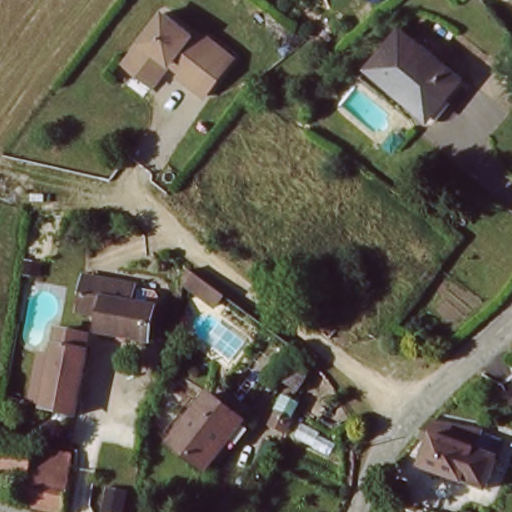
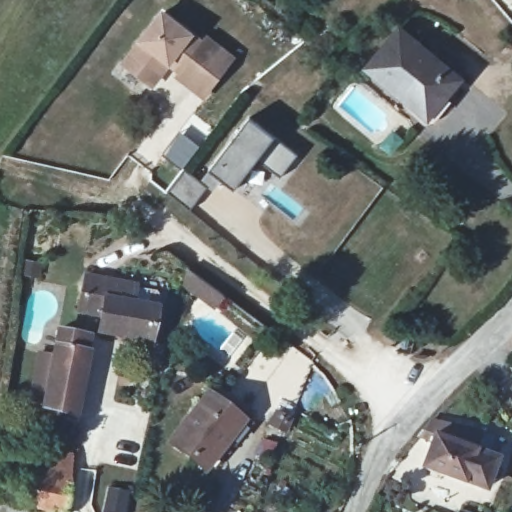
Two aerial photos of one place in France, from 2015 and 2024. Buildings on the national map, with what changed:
unchanged [(211,49),(215,44),(241,62),(215,101),(188,82),(191,78),(170,64),(154,86),(134,72),(170,20),(211,49)]
unchanged [(390,52),(407,32),(431,53),(454,72),(470,84),(459,98),(438,124),(437,123),(415,105),(390,85),(374,73),(390,52)]
new [(184,171),(200,181),(211,168),(250,118),(274,136),(298,154),(282,177),(258,158),(235,189),(221,178),(214,190),(208,186),(190,209),(170,192),(184,171)]
unchanged [(213,306),(186,287),(189,273),(198,280),(209,287),(220,295),(213,306)]
unchanged [(81,274),(97,277),(111,280),(111,283),(120,285),(131,288),(128,302),(142,304),(162,308),(156,342),(95,329),(98,313),(75,309),(81,274)]
unchanged [(85,351),(84,357),(79,394),(77,416),(66,413),(43,407),(45,396),(51,359),(55,330),(82,334),(79,349),(85,351)]
unchanged [(209,392),(243,419),(227,440),(208,466),(173,439),(202,403),(209,392)]
unchanged [(423,432),(429,427),(456,433),(469,435),(479,437),(474,453),(486,457),(494,460),(483,491),(461,485),(459,486),(450,483),(417,473),(424,445),(411,442),(423,432)]
unchanged [(75,475),(75,476),(71,492),(66,511),(47,506),(35,503),(25,499),(29,474),(21,472),(0,466),(0,433),(10,437),(53,450),(74,454),(75,475)]

